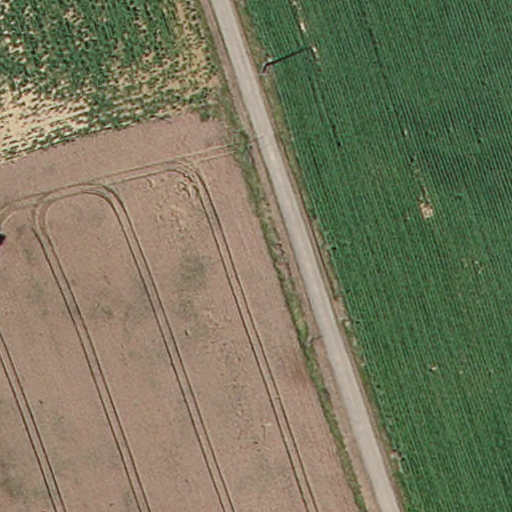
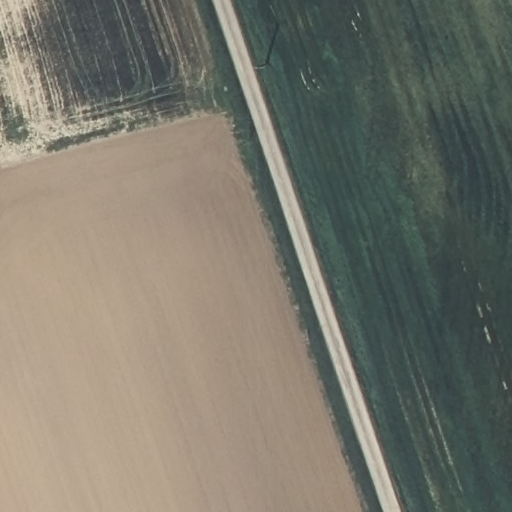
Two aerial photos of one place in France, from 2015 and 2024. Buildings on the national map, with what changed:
[]

